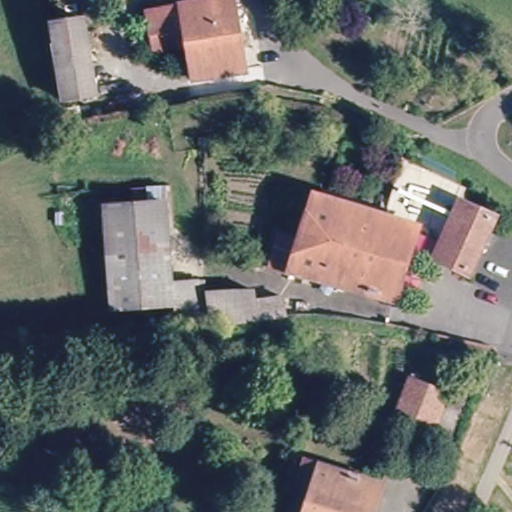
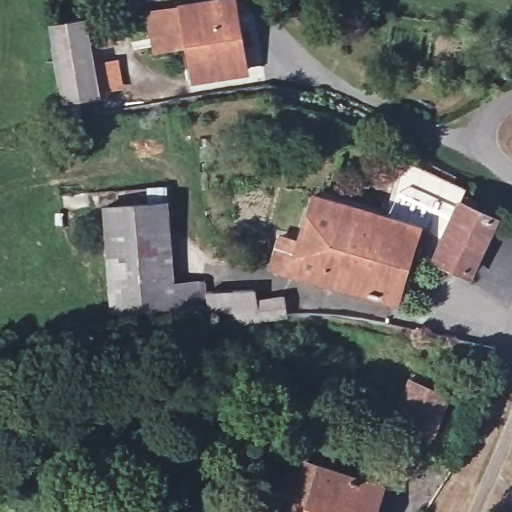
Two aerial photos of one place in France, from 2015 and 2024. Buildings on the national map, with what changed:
unchanged [(195,73),(185,24),(152,31),(147,8),(184,0),(229,0),(233,12),(240,67),(195,73)]
unchanged [(98,90),(66,95),(55,22),(85,17),(98,90)]
unchanged [(154,190),(170,291),(173,310),(120,319),(92,202),(154,190)]
unchanged [(493,209),(468,270),(437,258),(465,199),(493,209)]
unchanged [(326,201),(398,227),(420,235),(390,306),(325,285),(337,257),(307,246),(326,201)]
unchanged [(287,239),(307,246),(337,257),(325,285),(298,277),(273,264),(287,239)]
unchanged [(200,288),(201,299),(205,332),(179,333),(173,310),(170,291),(200,288)]
unchanged [(284,331),(205,332),(201,299),(252,295),(255,310),(282,308),(284,331)]
unchanged [(455,398),(440,438),(400,422),(416,382),(455,398)]
unchanged [(390,490),(382,512),(302,512),(305,498),(286,492),(297,457),(390,490)]
unchanged [(305,498),(302,512),(273,512),(280,490),(286,492),(305,498)]

